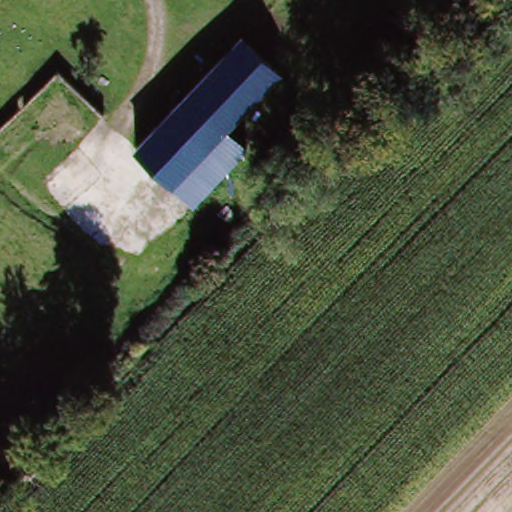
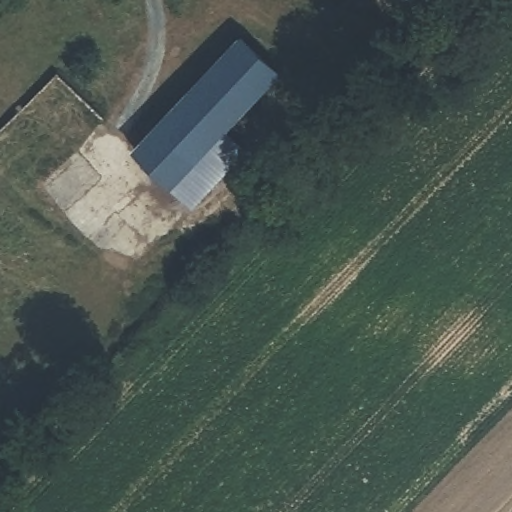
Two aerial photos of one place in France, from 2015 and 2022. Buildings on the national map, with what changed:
unchanged [(132,153),(235,43),(274,80),(233,122),(170,184),(132,153)]
unchanged [(233,122),(259,146),(192,209),(170,184),(233,122)]

